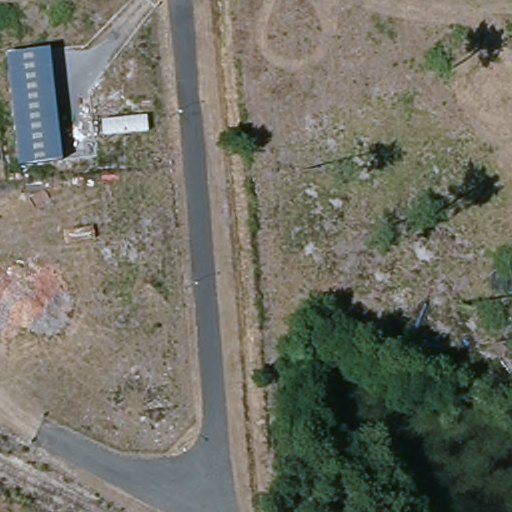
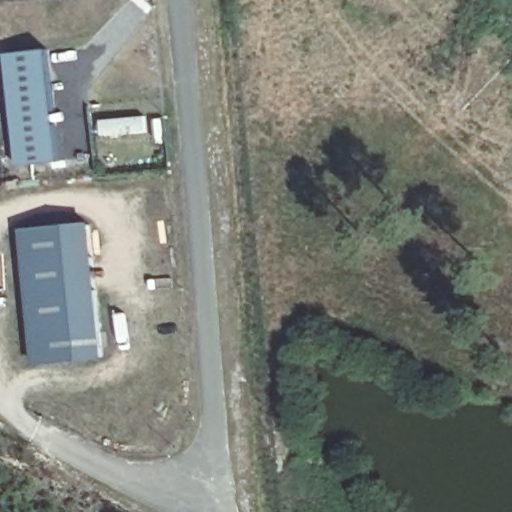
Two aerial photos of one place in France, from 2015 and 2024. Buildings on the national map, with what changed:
unchanged [(17,165),(6,55),(50,50),(61,161),(17,165)]
new [(104,357),(35,365),(22,230),(92,223),(104,357)]

